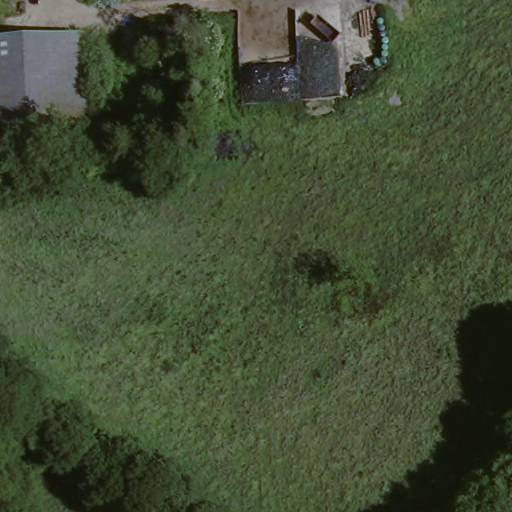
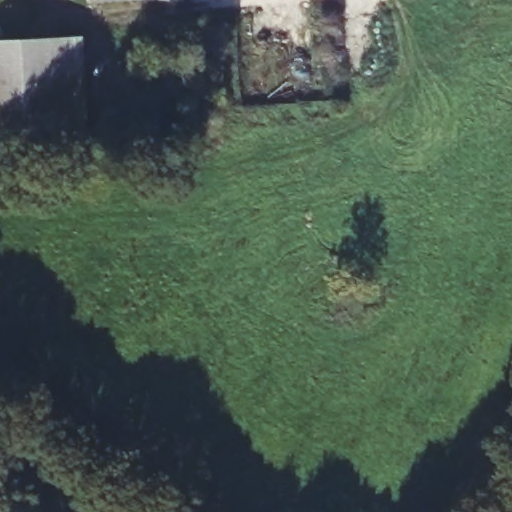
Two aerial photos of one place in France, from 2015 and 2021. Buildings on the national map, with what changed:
unchanged [(69,36),(88,35),(94,124),(66,126),(69,36)]
unchanged [(69,36),(66,126),(0,131),(0,41),(69,36)]

